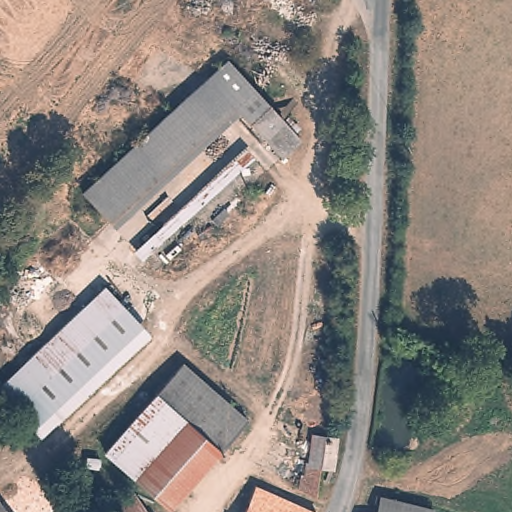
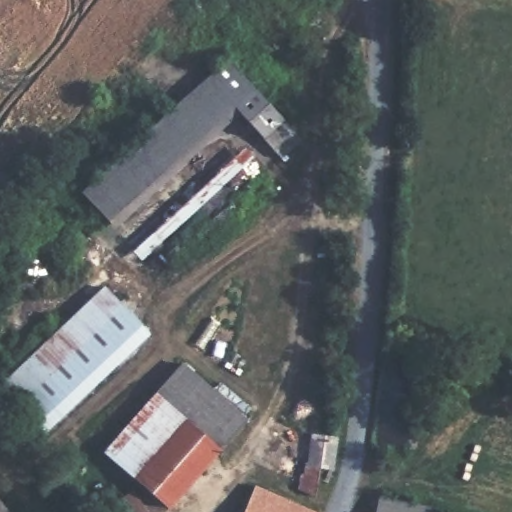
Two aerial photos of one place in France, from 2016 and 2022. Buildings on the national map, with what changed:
unchanged [(230,63),(305,147),(280,168),(233,113),(206,84),(230,63)]
unchanged [(107,226),(81,196),(206,84),(233,113),(107,226)]
unchanged [(134,313),(150,331),(41,440),(22,420),(0,397),(0,382),(101,279),(134,313)]
unchanged [(191,369),(221,395),(191,419),(166,391),(191,369)]
unchanged [(106,444),(166,391),(191,419),(221,395),(252,427),(199,473),(162,505),(156,498),(106,444)]
unchanged [(334,474),(320,473),(315,496),(296,493),(298,477),(303,478),(305,466),(311,467),(316,436),(335,436),(334,474)]
unchanged [(257,488),(315,512),(247,512),(257,488)]
unchanged [(139,496),(148,512),(110,512),(139,496)]
unchanged [(433,510),(433,512),(381,512),(384,498),(433,510)]
unchanged [(0,504),(6,512),(0,512),(0,504)]

